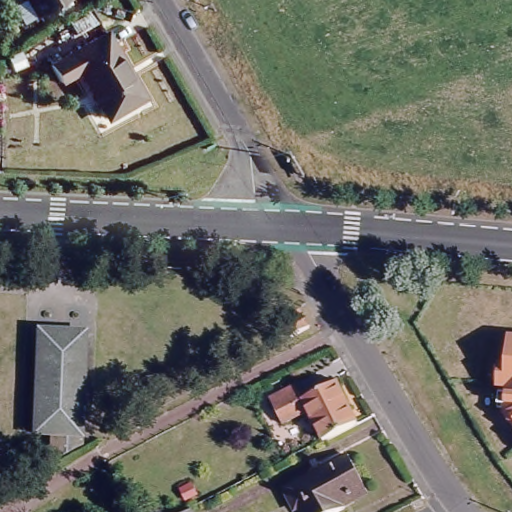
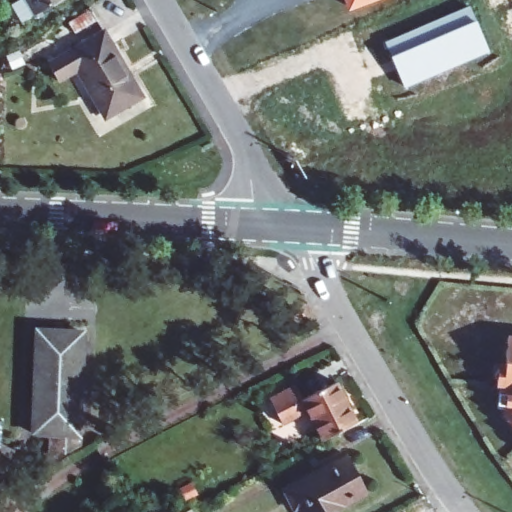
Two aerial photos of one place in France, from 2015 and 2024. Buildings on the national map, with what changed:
unchanged [(22,21),(12,2),(16,0),(58,0),(22,21)]
new [(347,12),(343,0),(378,0),(347,12)]
new [(490,52),(403,88),(383,42),(470,6),(490,52)]
unchanged [(100,31),(137,95),(100,117),(64,52),(100,31)]
unchanged [(315,327),(298,336),(289,318),(307,310),(315,327)]
unchanged [(80,328),(77,440),(48,457),(50,430),(32,429),(35,327),(80,328)]
unchanged [(323,435),(309,408),(284,421),(270,395),(295,383),(302,396),(337,378),(357,418),(323,435)]
unchanged [(510,409),(510,381),(512,382),(512,412),(510,409)]
unchanged [(350,499),(325,512),(314,512),(306,498),(300,500),(288,478),(353,446),(371,479),(373,484),(349,497),(350,499)]
unchanged [(199,512),(179,512),(195,504),(199,512)]

